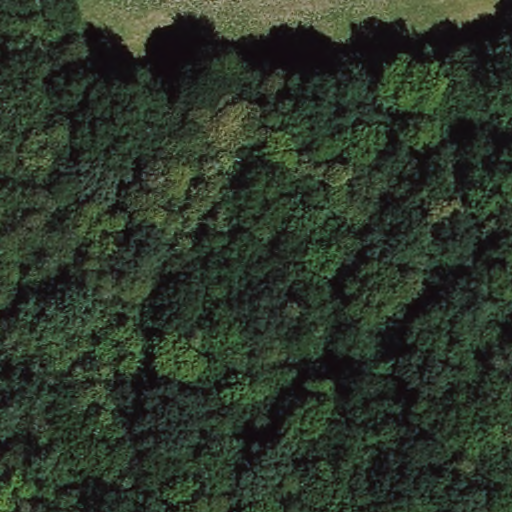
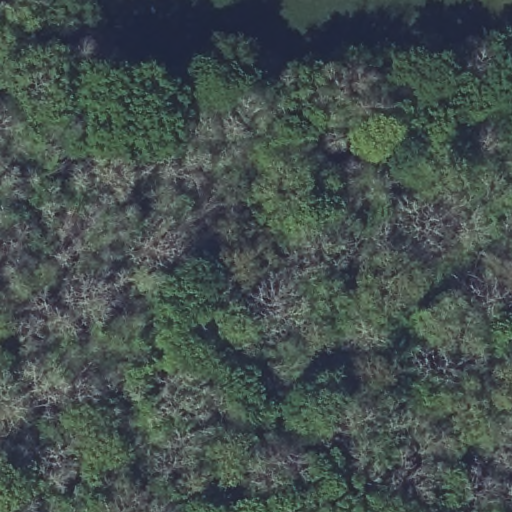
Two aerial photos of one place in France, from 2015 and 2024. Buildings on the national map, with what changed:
[]

